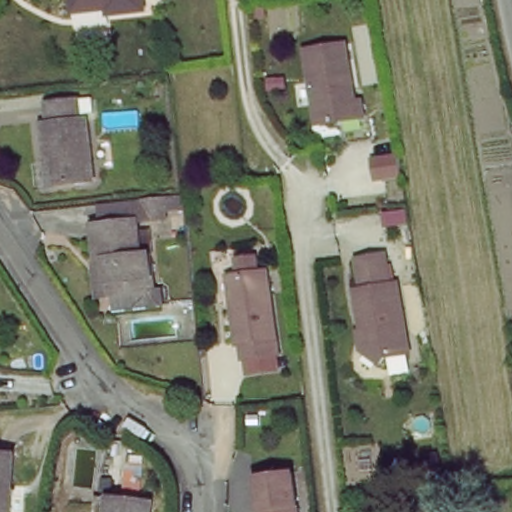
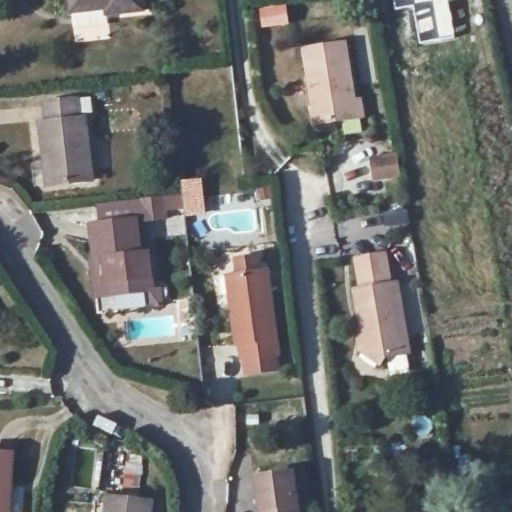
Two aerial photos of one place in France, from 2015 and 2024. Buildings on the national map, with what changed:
unchanged [(108,16),(106,7),(71,11),(69,0),(145,0),(147,11),(108,16)]
new [(412,6),(396,10),(393,0),(452,0),(449,0),(412,6)]
new [(449,0),(456,37),(419,45),(412,6),(449,0)]
unchanged [(297,45),(340,39),(351,97),(357,96),(360,113),(311,122),(297,45)]
unchanged [(49,157),(44,119),(50,118),(48,101),(81,97),(83,117),(89,116),(98,177),(61,182),(53,183),(49,157)]
unchanged [(389,147),(392,167),(367,171),(364,151),(389,147)]
unchanged [(168,191),(172,217),(165,217),(160,217),(150,218),(147,217),(144,193),(168,191)]
unchanged [(94,258),(101,257),(97,222),(150,218),(160,287),(157,288),(162,307),(123,311),(120,291),(116,291),(99,293),(94,258)]
unchanged [(363,330),(355,291),(362,290),(357,259),(385,253),(391,284),(398,282),(411,351),(388,355),(383,366),(362,352),(359,335),(363,330)]
unchanged [(268,274),(281,356),(247,360),(247,347),(240,348),(233,314),(238,307),(233,277),(268,274)]
unchanged [(19,512),(0,512),(0,453),(12,453),(10,485),(19,486),(19,512)]
unchanged [(295,478),(300,512),(264,512),(260,481),(295,478)]
unchanged [(154,502),(153,512),(107,512),(109,499),(154,502)]

